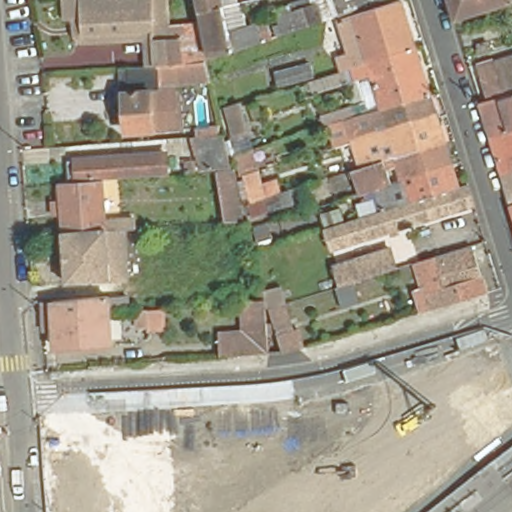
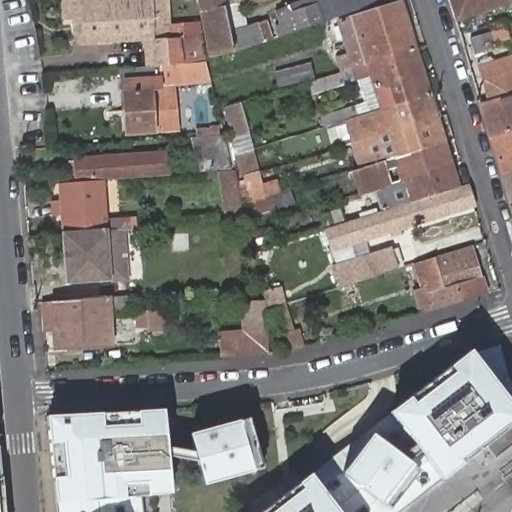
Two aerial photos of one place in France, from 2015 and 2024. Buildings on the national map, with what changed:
unchanged [(150,65),(144,66),(142,42),(75,46),(72,12),(70,12),(69,0),(82,0),(84,36),(154,31),(154,39),(152,39),(154,65),(150,65)]
unchanged [(153,27),(154,31),(84,36),(82,0),(152,0),(152,6),(153,27)]
unchanged [(263,41),(254,45),(220,56),(210,60),(196,0),(256,0),(245,2),(250,26),(257,24),(261,35),(263,41)]
unchanged [(382,0),(385,9),(405,3),(458,186),(472,183),(477,207),(330,256),(328,249),(319,229),(318,216),(342,210),(345,220),(391,206),(387,190),(353,200),(348,180),(330,184),(324,162),(352,155),(355,168),(369,165),(355,126),(337,132),(335,124),(322,129),(318,117),(358,104),(333,21),(277,39),(272,10),(301,0),(382,0)]
unchanged [(512,0),(512,3),(460,19),(454,0),(512,0)]
unchanged [(183,64),(179,64),(160,65),(154,65),(152,39),(154,39),(182,37),(179,17),(194,14),(205,62),(183,64)]
unchanged [(495,97),(485,65),(512,57),(512,92),(495,97)]
unchanged [(306,60),(310,76),(277,83),(274,67),(306,60)]
unchanged [(154,65),(160,65),(179,64),(183,64),(205,62),(210,82),(180,85),(171,85),(174,127),(161,128),(153,129),(153,130),(127,132),(124,69),(150,67),(150,65),(154,65)]
unchanged [(485,100),(495,97),(512,92),(512,130),(495,135),(485,100)]
unchanged [(250,98),(264,151),(279,147),(283,161),(252,169),(261,200),(297,190),(302,207),(253,221),(241,175),(225,105),(250,98)]
unchanged [(495,135),(512,130),(512,191),(495,135)]
unchanged [(224,135),(226,170),(199,171),(195,137),(224,135)]
unchanged [(84,162),(161,157),(162,173),(85,177),(84,162)]
unchanged [(242,222),(227,224),(225,224),(217,172),(234,171),(242,222)]
unchanged [(92,232),(61,234),(58,183),(104,180),(106,220),(133,219),(134,230),(124,230),(107,231),(92,232)]
unchanged [(92,232),(107,231),(124,230),(125,279),(65,283),(61,234),(92,232)]
unchanged [(483,293),(416,313),(410,288),(421,285),(413,260),(468,243),(483,293)]
unchanged [(335,298),(326,267),(385,250),(393,276),(335,298)]
unchanged [(212,354),(210,332),(235,330),(234,298),(258,296),(262,351),(212,354)]
unchanged [(282,319),(290,345),(274,349),(267,323),(262,300),(276,296),(282,319)]
unchanged [(56,336),(45,336),(43,306),(54,305),(61,305),(93,302),(110,301),(112,317),(115,348),(71,351),(57,352),(56,336)]
unchanged [(135,335),(131,310),(165,308),(165,331),(135,335)]
new [(388,412),(470,348),(512,403),(512,425),(441,480),(388,412)]
demolished [(293,403),(329,468),(333,475),(344,495),(354,512),(274,512),(230,450),(266,426),(256,412),(267,405),(286,404),(293,403)]
new [(172,495),(140,497),(55,503),(46,417),(164,409),(172,495)]
new [(310,473),(388,412),(441,480),(400,512),(340,512),(310,473)]
new [(260,470),(202,486),(189,433),(247,417),(260,470)]
new [(391,508),(343,475),(372,435),(419,470),(391,508)]
demolished [(229,447),(230,450),(274,512),(214,512),(194,482),(205,475),(201,468),(229,447)]
demolished [(105,503),(61,506),(60,485),(50,485),(50,468),(104,463),(104,481),(105,503)]
unchanged [(0,475),(0,464),(1,475),(0,475)]
new [(310,473),(340,512),(259,512),(310,473)]
unchanged [(5,512),(0,512),(0,475),(1,475),(5,512)]
demolished [(161,493),(178,512),(155,512),(148,503),(161,493)]
new [(55,503),(140,497),(142,512),(56,512),(55,503)]
demolished [(80,510),(110,507),(111,512),(80,512),(80,510)]

